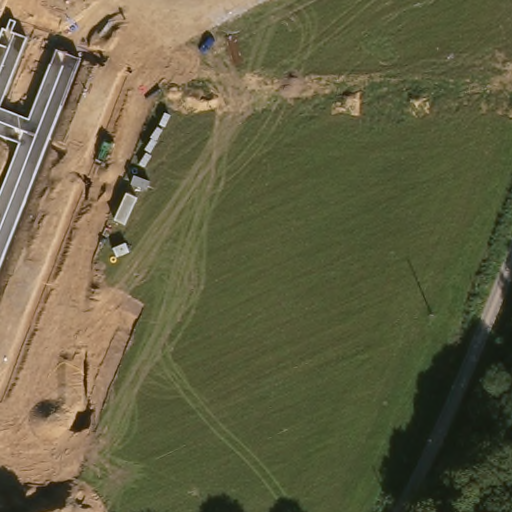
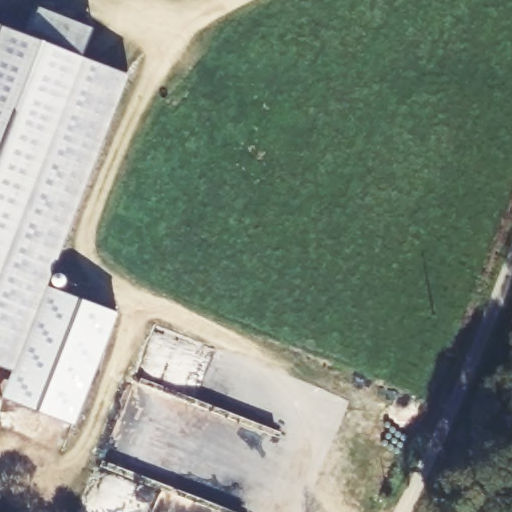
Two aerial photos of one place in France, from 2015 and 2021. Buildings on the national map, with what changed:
new [(28,36),(40,8),(93,29),(83,57),(129,75),(14,372),(0,366),(0,26),(1,27),(28,36)]

